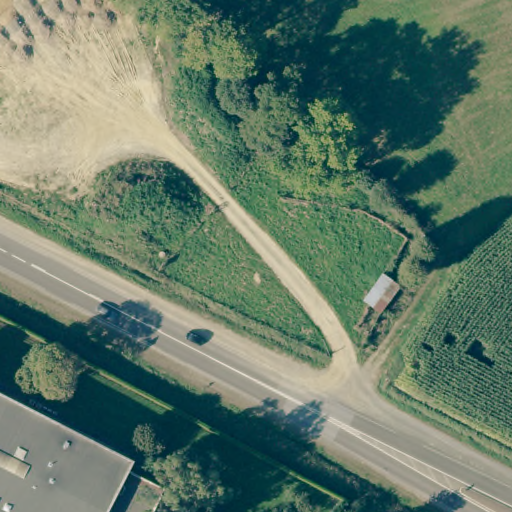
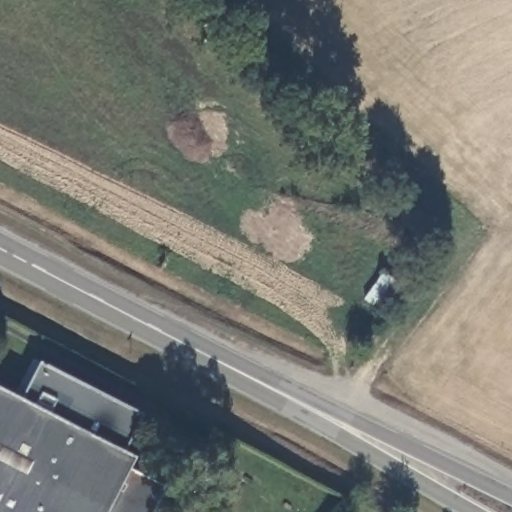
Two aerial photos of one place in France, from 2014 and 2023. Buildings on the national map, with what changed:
new [(20,398),(39,364),(141,417),(124,452),(20,398)]
unchanged [(140,460),(135,471),(171,489),(159,512),(0,512),(0,388),(140,460)]

